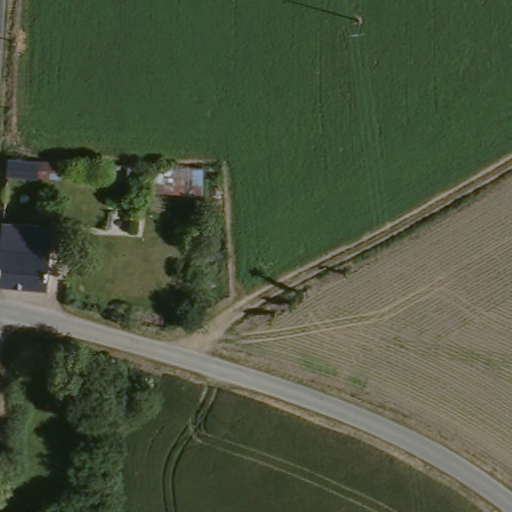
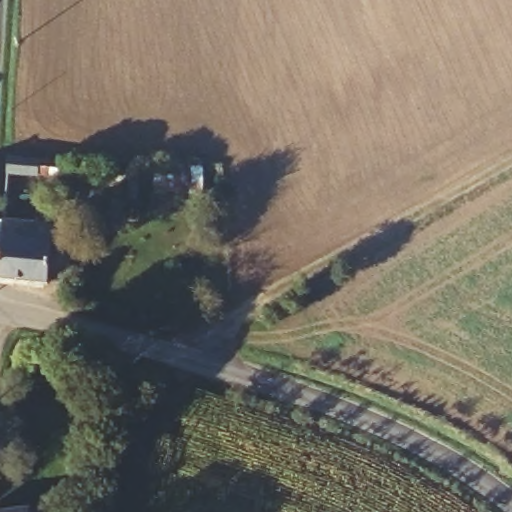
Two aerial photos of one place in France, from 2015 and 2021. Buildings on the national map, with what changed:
unchanged [(28,159),(27,176),(0,171),(0,154),(28,159)]
unchanged [(4,225),(55,230),(49,286),(0,282),(0,276),(4,225)]
unchanged [(29,512),(8,512),(29,509),(29,512)]

